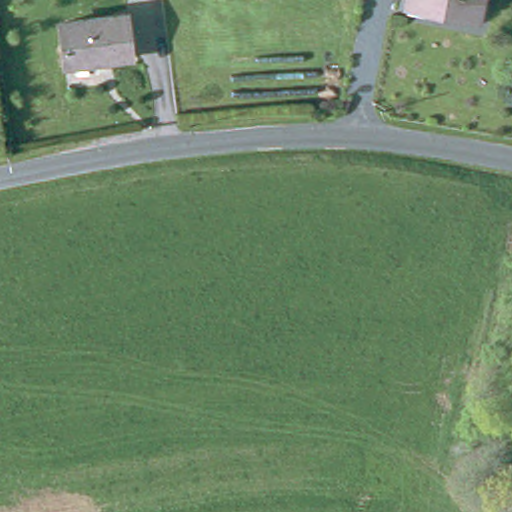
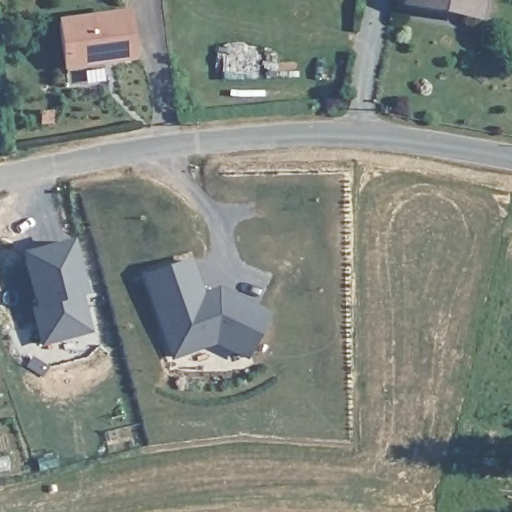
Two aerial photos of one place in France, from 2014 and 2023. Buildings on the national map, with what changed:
unchanged [(411,0),(481,0),(477,19),(410,6),(411,0)]
unchanged [(128,14),(137,57),(72,69),(63,26),(128,14)]
new [(69,242),(81,295),(73,296),(77,312),(81,310),(85,325),(80,334),(40,346),(30,308),(35,307),(21,257),(69,242)]
new [(186,261),(201,301),(212,297),(215,291),(263,315),(242,357),(212,342),(171,357),(142,277),(186,261)]

